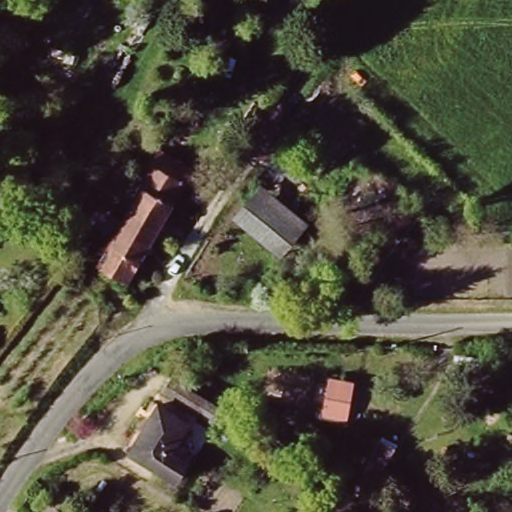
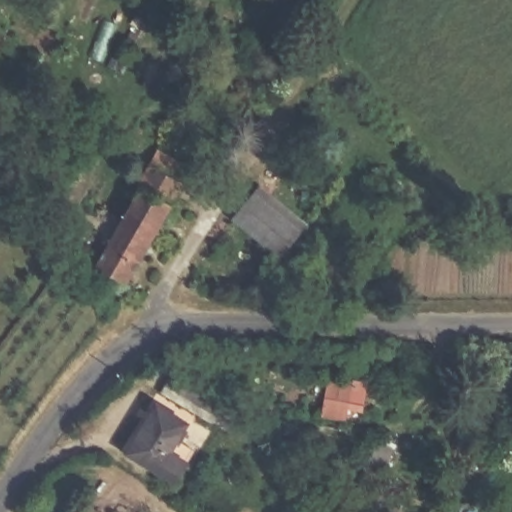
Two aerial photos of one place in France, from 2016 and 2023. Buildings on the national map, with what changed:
unchanged [(127,287),(97,271),(105,255),(142,191),(139,189),(158,154),(178,115),(185,119),(164,157),(192,174),(127,287)]
unchanged [(308,225),(286,252),(242,216),(264,189),(308,225)]
unchanged [(237,421),(231,431),(213,419),(212,422),(162,390),(171,377),(237,421)]
unchanged [(357,387),(349,425),(324,420),(332,381),(357,387)]
unchanged [(157,413),(187,432),(175,453),(192,464),(177,488),(160,477),(158,480),(128,462),(157,413)]
unchanged [(380,439),(396,447),(380,476),(364,467),(380,439)]
unchanged [(95,510),(98,512),(93,512),(95,510)]

